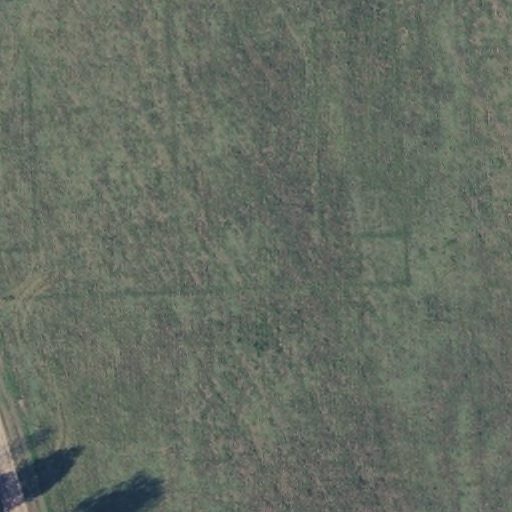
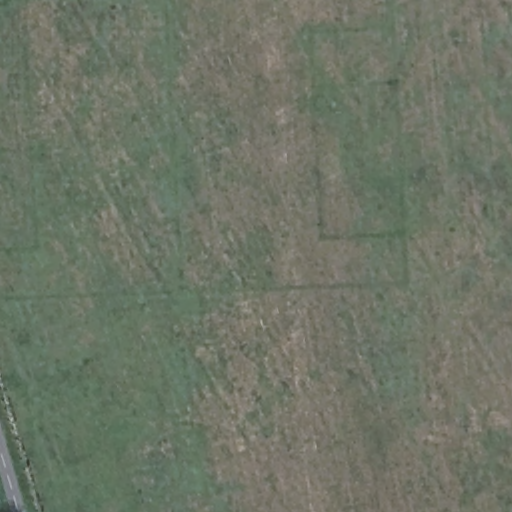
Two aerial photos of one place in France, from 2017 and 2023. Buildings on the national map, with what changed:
[]

